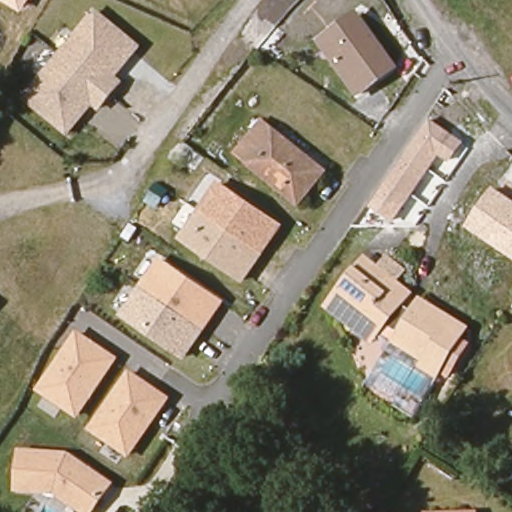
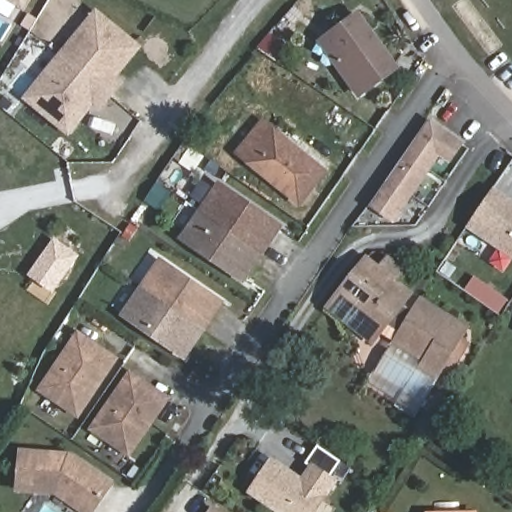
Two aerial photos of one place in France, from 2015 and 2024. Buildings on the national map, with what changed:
unchanged [(24,10),(6,0),(30,0),(24,10)]
unchanged [(402,67),(359,99),(318,41),(359,11),(402,67)]
unchanged [(96,12),(139,46),(114,77),(121,82),(100,107),(93,102),(69,132),(26,98),(96,12)]
unchanged [(430,117),(464,140),(452,156),(442,150),(396,217),(374,202),(430,117)]
unchanged [(268,130),(325,175),(301,205),(244,158),(268,130)]
unchanged [(180,239),(219,180),(285,224),(245,284),(180,239)]
unchanged [(512,258),(466,227),(494,187),(512,200),(512,258)]
unchanged [(119,316),(160,256),(226,301),(185,362),(119,316)]
unchanged [(344,317),(330,307),(362,268),(402,302),(397,312),(412,321),(420,311),(459,333),(434,375),(419,366),(424,358),(382,335),(377,341),(344,317)]
unchanged [(38,391),(77,330),(121,358),(80,420),(38,391)]
unchanged [(89,430),(129,370),(172,398),(131,460),(89,430)]
new [(274,512),(247,494),(272,456),(303,477),(309,466),(306,464),(318,446),(340,460),(330,475),(338,480),(316,512),(274,512)]
unchanged [(15,492),(20,447),(70,452),(114,482),(94,512),(80,512),(53,495),(15,492)]
new [(224,512),(206,512),(212,504),(224,512)]

